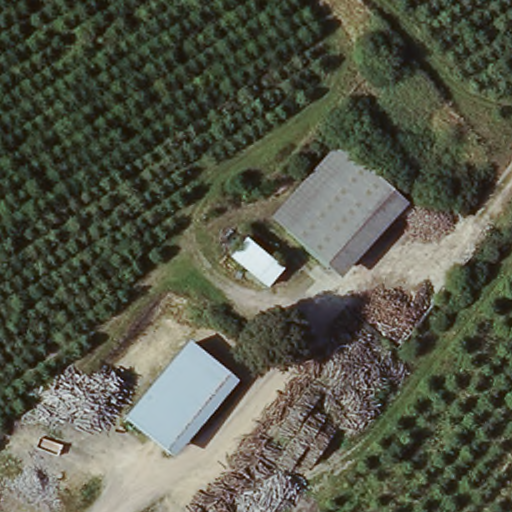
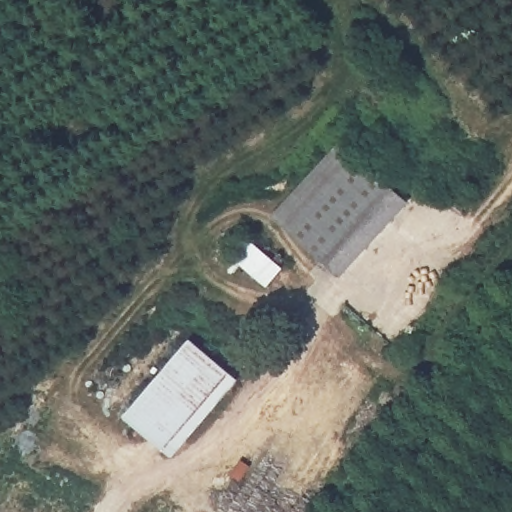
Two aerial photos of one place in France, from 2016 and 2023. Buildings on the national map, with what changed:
unchanged [(288,232),(271,217),(340,142),(359,157),(288,232)]
unchanged [(359,157),(410,205),(345,282),(288,232),(359,157)]
unchanged [(231,261),(247,241),(287,273),(271,291),(231,261)]
unchanged [(193,345),(241,386),(180,460),(129,420),(193,345)]

